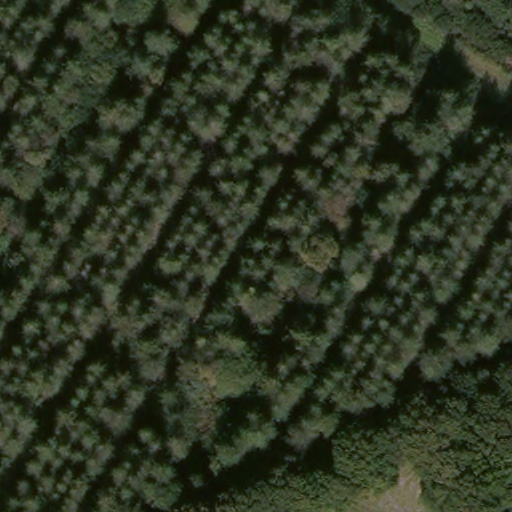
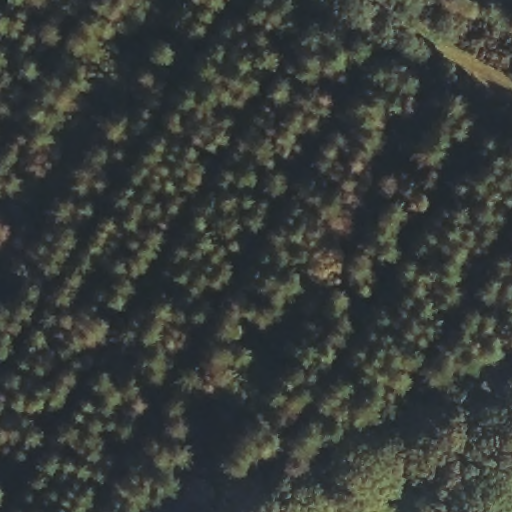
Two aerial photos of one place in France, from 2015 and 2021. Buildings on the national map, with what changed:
[]

